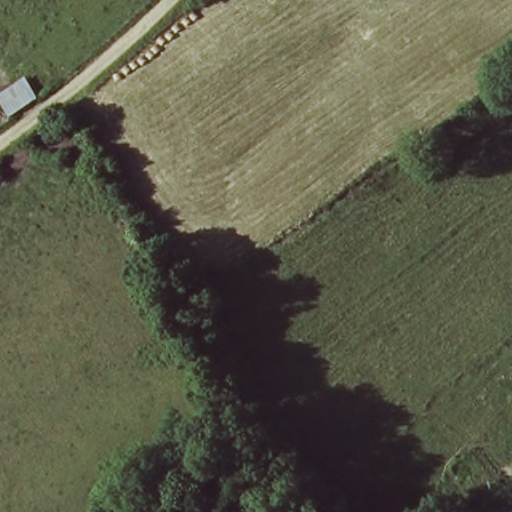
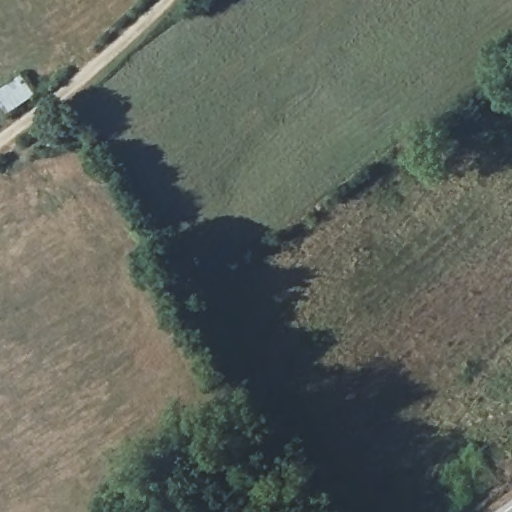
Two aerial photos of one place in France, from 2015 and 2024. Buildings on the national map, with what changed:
unchanged [(23,77),(36,97),(8,115),(0,102),(0,93),(6,90),(23,77)]

